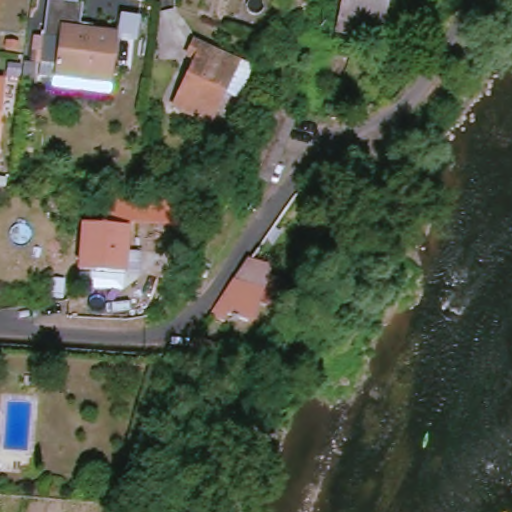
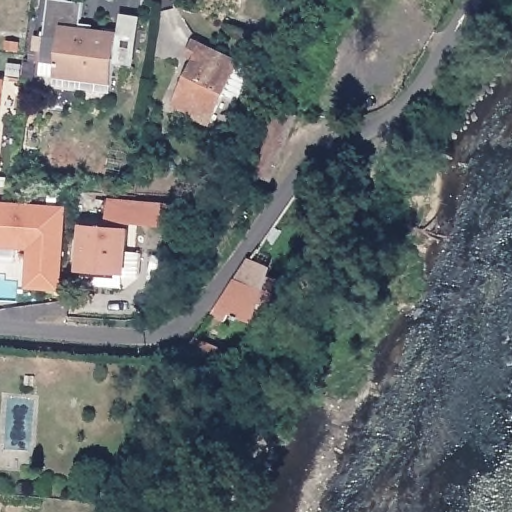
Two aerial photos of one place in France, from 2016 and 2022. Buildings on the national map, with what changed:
unchanged [(113,87),(56,79),(58,71),(43,69),(44,57),(43,57),(51,0),(87,0),(84,21),(93,22),(93,26),(121,31),(114,76),(113,87)]
unchanged [(358,33),(341,30),(348,0),(389,0),(384,27),(382,39),(358,33)]
unchanged [(171,106),(193,57),(186,54),(192,40),(238,62),(209,123),(171,106)]
unchanged [(5,76),(0,122),(0,75),(5,76)]
unchanged [(274,185),(273,185),(239,172),(265,107),(299,121),(274,185)]
unchanged [(203,216),(200,225),(109,219),(111,199),(208,204),(203,216)]
new [(67,206),(63,291),(27,287),(28,249),(0,247),(0,201),(67,206)]
unchanged [(83,270),(87,225),(131,229),(128,273),(83,270)]
unchanged [(231,297),(254,264),(273,272),(253,327),(226,318),(223,324),(214,321),(231,297)]
unchanged [(188,351),(193,337),(219,347),(214,362),(188,351)]
unchanged [(103,501),(104,481),(119,482),(113,502),(103,501)]

